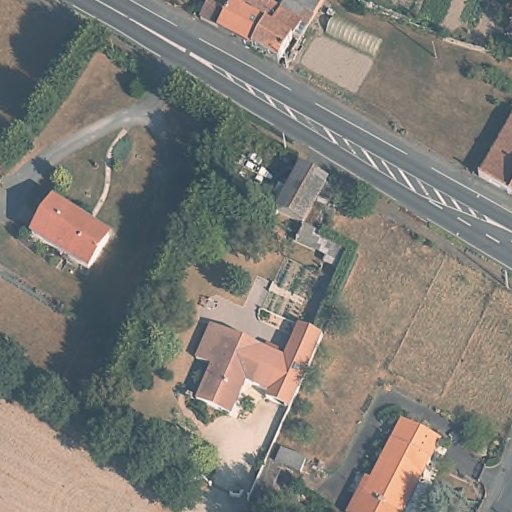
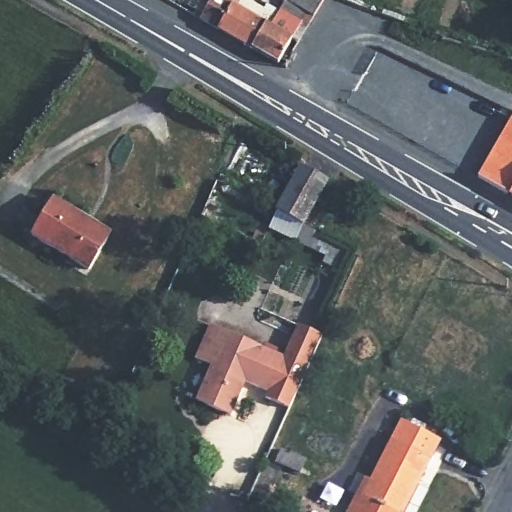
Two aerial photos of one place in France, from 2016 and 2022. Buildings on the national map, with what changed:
unchanged [(287,38),(273,62),(214,28),(224,10),(210,2),(212,0),(222,0),(233,6),(236,0),(244,0),(264,12),(261,19),(268,22),(280,0),(318,0),(298,35),(295,40),(287,38)]
unchanged [(479,182),(512,124),(512,200),(479,182)]
unchanged [(333,189),(309,231),(275,211),(298,169),(333,189)]
unchanged [(108,234),(86,269),(30,236),(54,199),(108,234)]
unchanged [(311,330),(320,333),(288,407),(278,402),(265,397),(268,390),(246,380),(230,416),(195,401),(211,365),(196,358),(211,325),(282,357),(297,323),(311,330)]
unchanged [(361,477),(367,481),(400,420),(440,441),(416,485),(401,512),(343,512),(361,477)]
unchanged [(266,496),(262,503),(252,498),(256,491),(266,496)]

